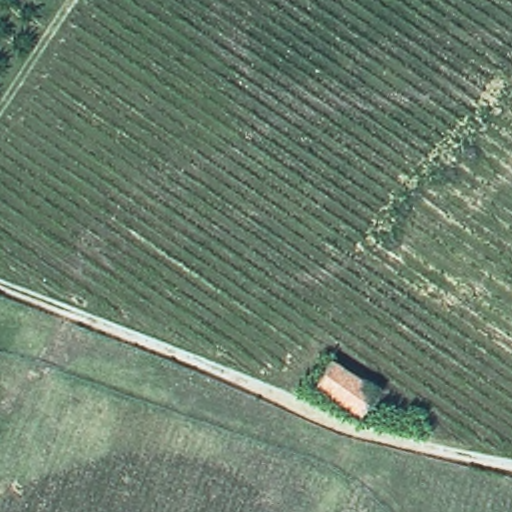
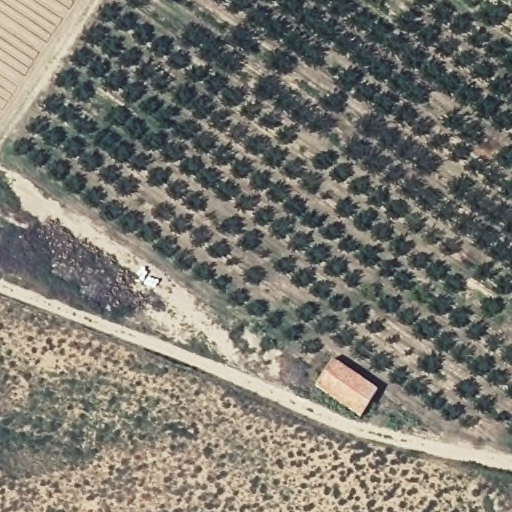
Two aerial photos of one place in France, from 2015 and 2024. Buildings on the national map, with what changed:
unchanged [(323,362),(367,390),(352,416),(307,387),(323,362)]

